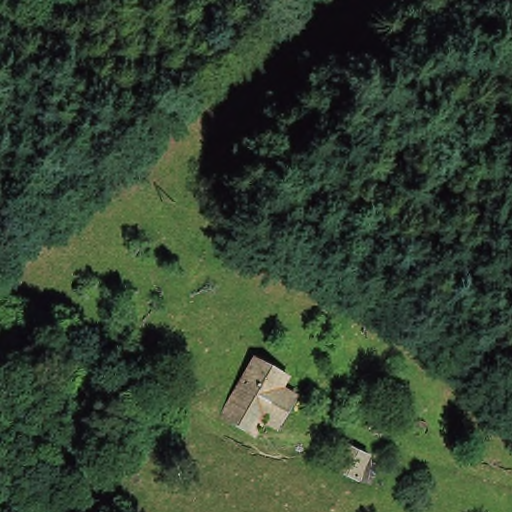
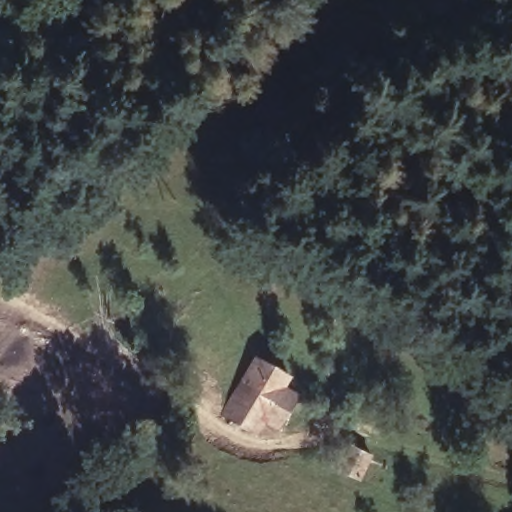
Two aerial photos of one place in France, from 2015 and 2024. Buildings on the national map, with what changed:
unchanged [(255,437),(222,418),(255,360),(288,378),(282,390),(296,398),(278,430),(265,422),(255,437)]
unchanged [(335,450),(357,459),(350,479),(327,470),(335,450)]

